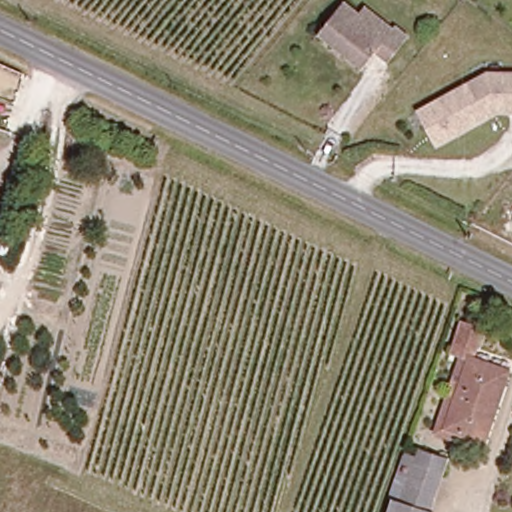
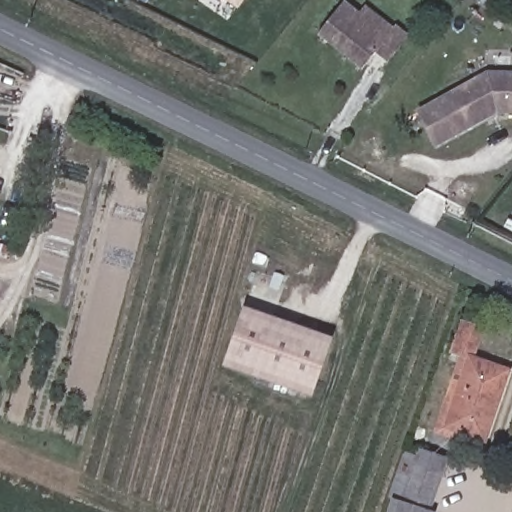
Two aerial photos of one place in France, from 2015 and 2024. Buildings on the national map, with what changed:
new [(225,0),(244,0),(238,9),(225,0)]
unchanged [(404,35),(383,61),(369,50),(355,65),(311,33),(337,0),(356,15),(363,8),(388,27),(391,24),(404,35)]
unchanged [(512,70),(512,108),(500,108),(438,140),(420,107),(490,70),(512,70)]
new [(332,337),(311,398),(223,367),(244,307),(332,337)]
unchanged [(476,346),(457,341),(463,321),(482,327),(476,346)]
unchanged [(463,441),(446,435),(429,430),(456,353),(464,355),(503,368),(480,434),(477,433),(473,445),(463,441)]
unchanged [(439,512),(393,512),(398,498),(418,447),(426,450),(453,458),(435,510),(439,512)]

